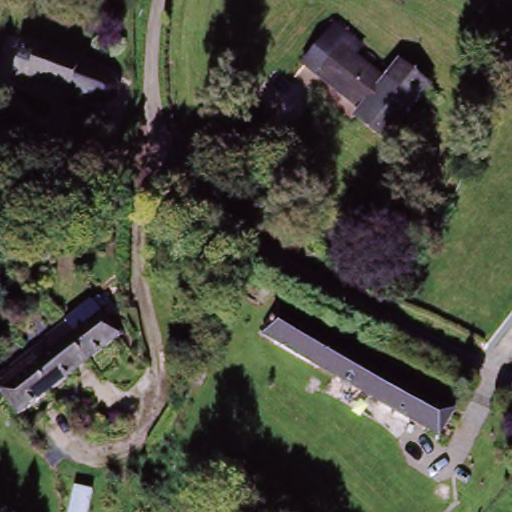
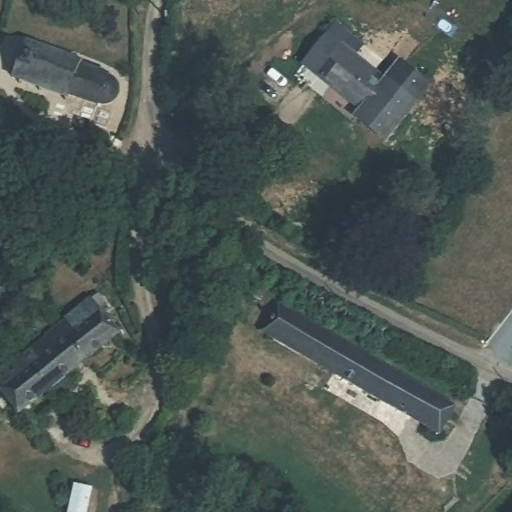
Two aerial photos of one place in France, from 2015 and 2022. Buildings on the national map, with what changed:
unchanged [(390,137),(360,115),(369,104),(310,58),(329,33),(389,79),(402,62),(430,85),(390,137)]
unchanged [(75,66),(90,71),(81,97),(67,92),(64,97),(12,80),(24,43),(77,60),(75,66)]
unchanged [(25,348),(92,300),(102,312),(97,315),(32,360),(25,348)]
unchanged [(282,306),(459,404),(442,433),(265,336),(282,306)]
unchanged [(0,388),(0,384),(32,360),(97,315),(116,342),(18,412),(0,388)]

